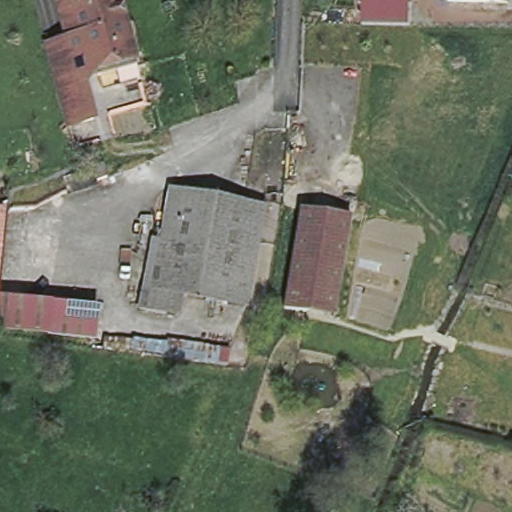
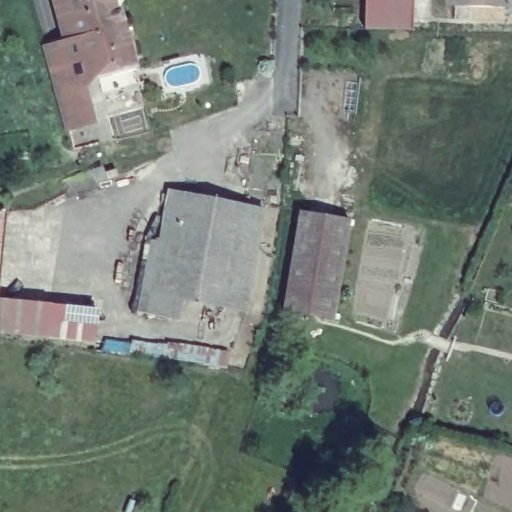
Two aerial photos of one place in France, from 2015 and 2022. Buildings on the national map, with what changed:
unchanged [(52,0),(124,0),(124,3),(119,12),(124,32),(64,47),(52,0)]
unchanged [(413,30),(366,29),(366,0),(413,0),(413,30)]
unchanged [(512,1),(488,0),(511,0),(512,1)]
unchanged [(64,47),(124,32),(134,68),(80,82),(54,89),(45,52),(64,47)]
unchanged [(80,82),(91,127),(67,132),(66,133),(54,89),(80,82)]
unchanged [(93,171),(96,183),(66,193),(63,180),(93,171)]
unchanged [(161,237),(170,187),(264,205),(246,305),(171,291),(166,312),(138,307),(152,236),(161,237)]
unchanged [(349,220),(333,319),(284,311),(300,212),(349,220)]
unchanged [(97,310),(94,341),(48,336),(49,305),(97,310)]

